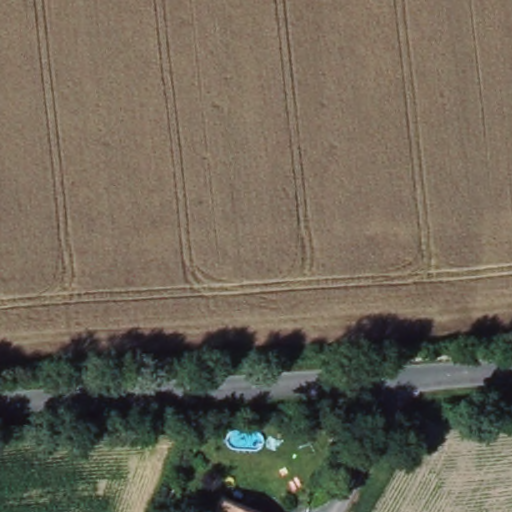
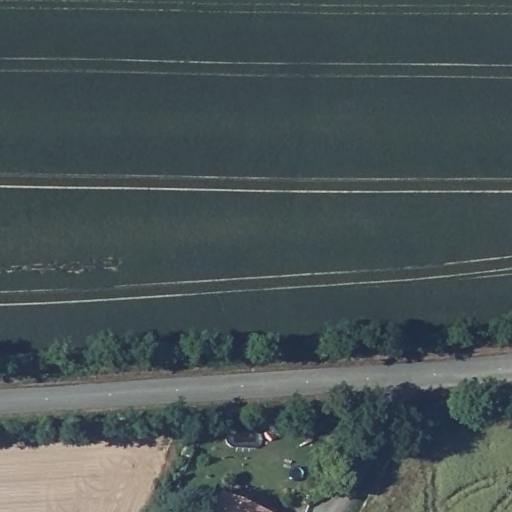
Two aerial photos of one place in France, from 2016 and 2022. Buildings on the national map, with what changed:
unchanged [(225,493),(266,512),(216,512),(225,493)]

